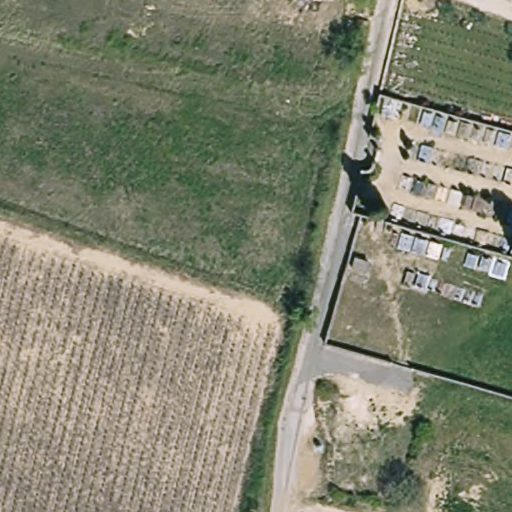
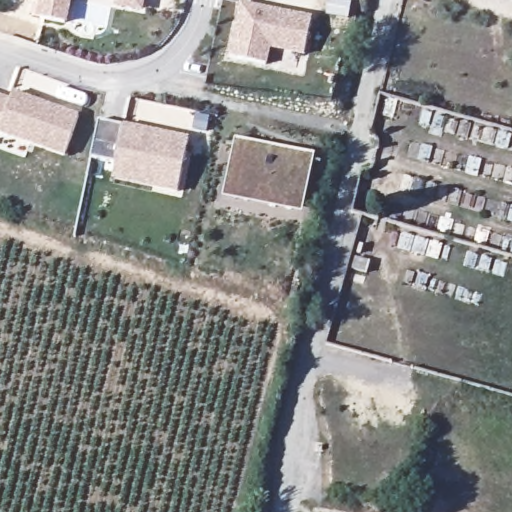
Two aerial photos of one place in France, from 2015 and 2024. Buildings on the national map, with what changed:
new [(67,26),(36,20),(40,0),(73,0),(67,26)]
new [(144,13),(116,8),(117,0),(146,0),(144,13)]
new [(241,4),(313,18),(304,58),(271,49),(267,66),(228,58),(241,4)]
new [(8,101),(12,94),(79,115),(65,157),(28,145),(24,158),(0,150),(0,97),(8,101)]
new [(124,125),(189,138),(178,194),(112,180),(115,164),(90,159),(98,120),(124,125)]
new [(315,156),(302,214),(223,197),(234,140),(315,156)]

